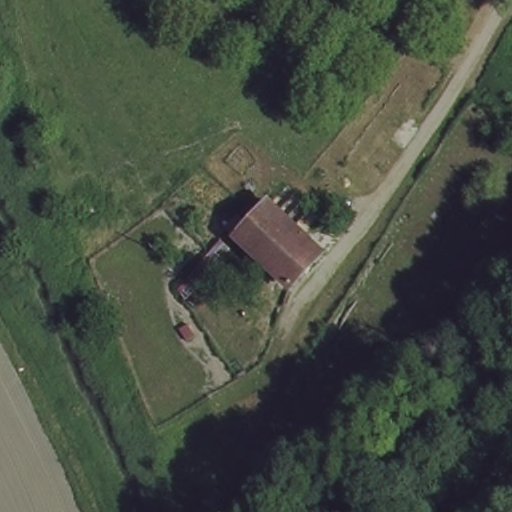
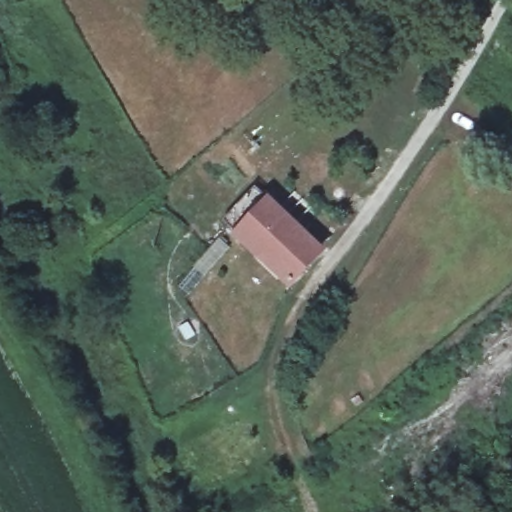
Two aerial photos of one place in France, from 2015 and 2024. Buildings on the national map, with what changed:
unchanged [(258,218),(273,202),(325,250),(310,266),(258,218)]
unchanged [(310,266),(291,287),(239,239),(258,218),(310,266)]

